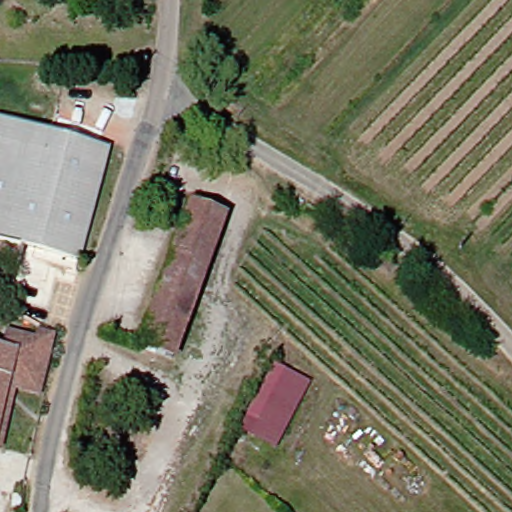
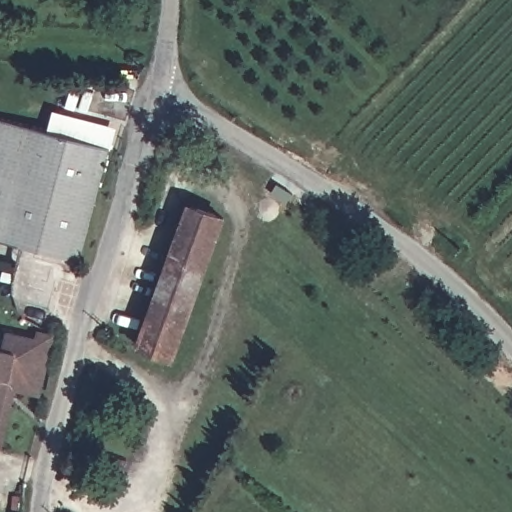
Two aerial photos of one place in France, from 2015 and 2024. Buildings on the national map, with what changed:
unchanged [(0,199),(23,120),(105,144),(74,257),(0,236),(0,199)]
unchanged [(132,347),(182,206),(216,218),(166,358),(132,347)]
unchanged [(7,335),(36,341),(38,335),(51,338),(45,362),(38,393),(14,388),(0,448),(0,352),(4,353),(7,335)]
demolished [(310,381),(278,447),(243,430),(277,361),(310,381)]

